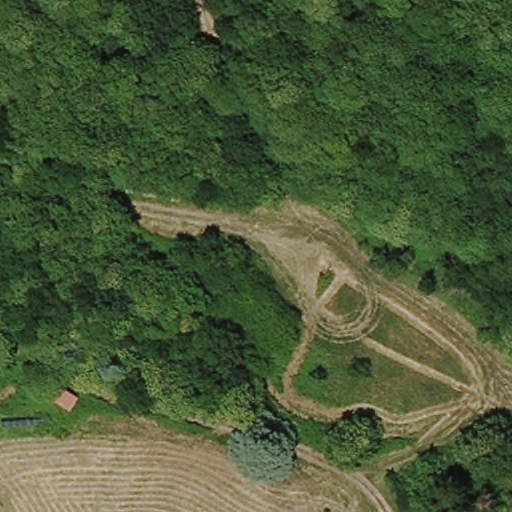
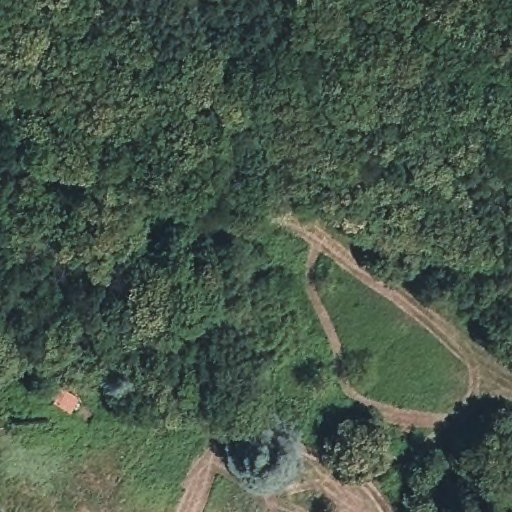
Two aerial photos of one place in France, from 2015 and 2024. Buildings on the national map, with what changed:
unchanged [(59,385),(81,399),(72,414),(50,399),(59,385)]

